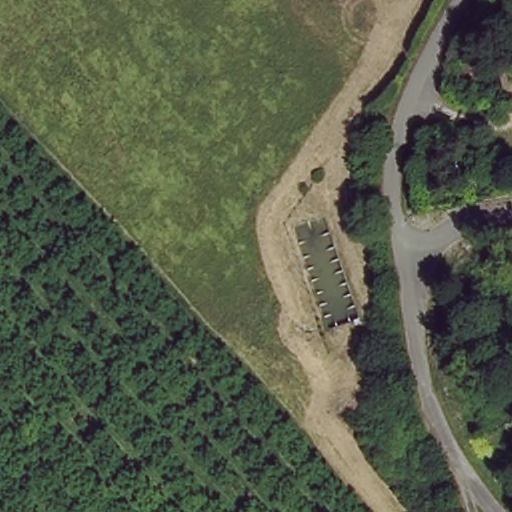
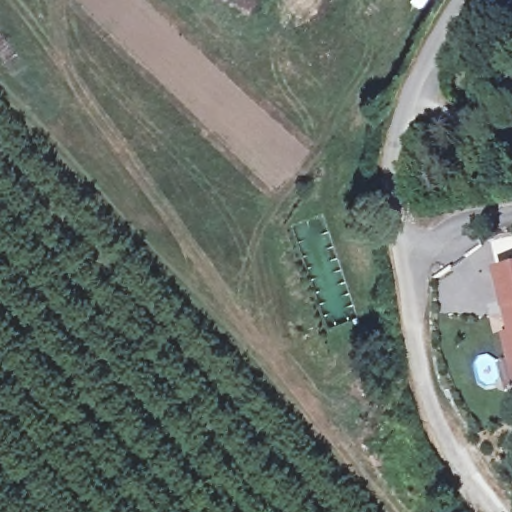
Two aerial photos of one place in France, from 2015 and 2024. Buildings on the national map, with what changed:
new [(508,334),(501,309),(492,272),(512,268),(512,382),(501,335),(508,334)]

